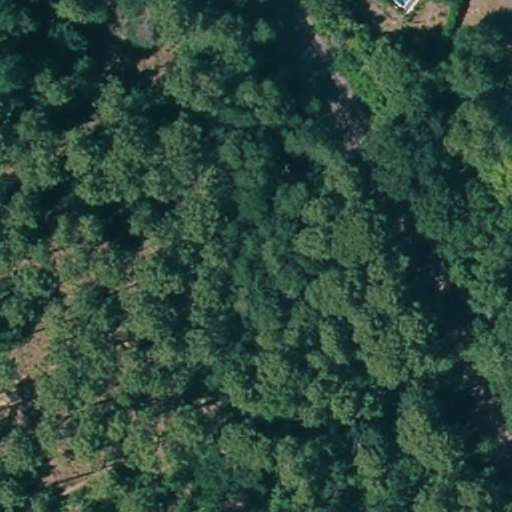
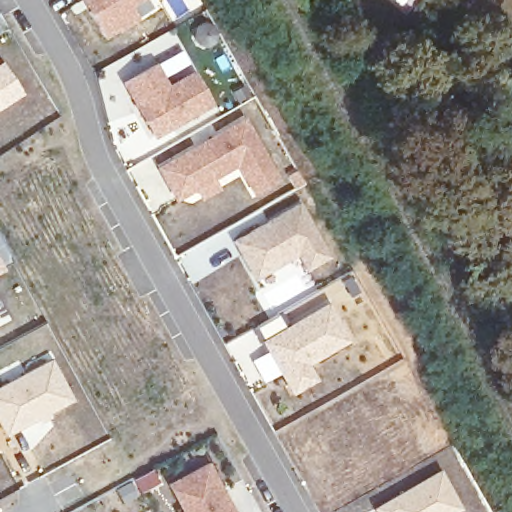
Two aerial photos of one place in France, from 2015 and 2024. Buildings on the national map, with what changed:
new [(83,0),(141,0),(131,6),(139,20),(105,38),(83,0)]
new [(23,94),(0,109),(0,61),(2,60),(23,94)]
new [(156,62),(169,83),(195,70),(213,105),(152,140),(121,82),(156,62)]
new [(254,196),(236,168),(216,179),(222,188),(201,199),(195,190),(175,202),(156,167),(245,117),(282,182),(254,196)]
new [(306,271),(298,256),(255,280),(231,240),(301,201),(332,257),(306,271)]
new [(0,267),(0,265),(1,266),(0,267)]
new [(310,363),(318,380),(291,394),(261,339),(263,339),(256,327),(278,313),(285,325),(329,301),(351,340),(310,363)]
new [(0,385),(50,358),(72,399),(48,411),(50,417),(40,423),(37,418),(5,435),(0,425),(0,385)]
new [(166,483),(209,460),(236,512),(179,512),(181,510),(166,483)]
new [(376,512),(373,507),(441,468),(463,508),(456,512),(376,512)]

